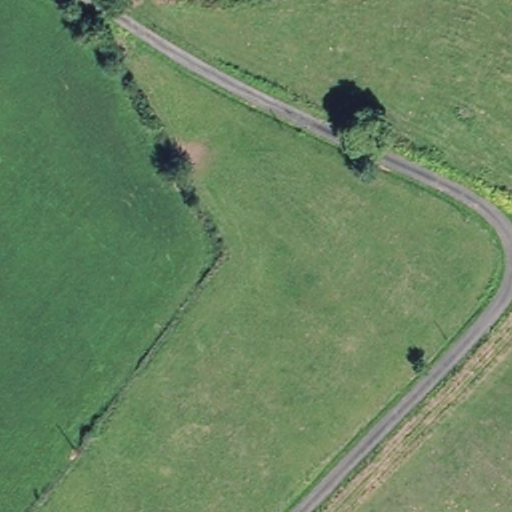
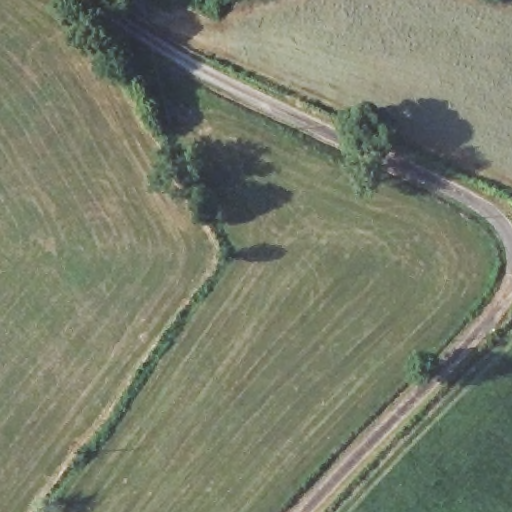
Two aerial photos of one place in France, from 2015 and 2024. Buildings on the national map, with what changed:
[]

